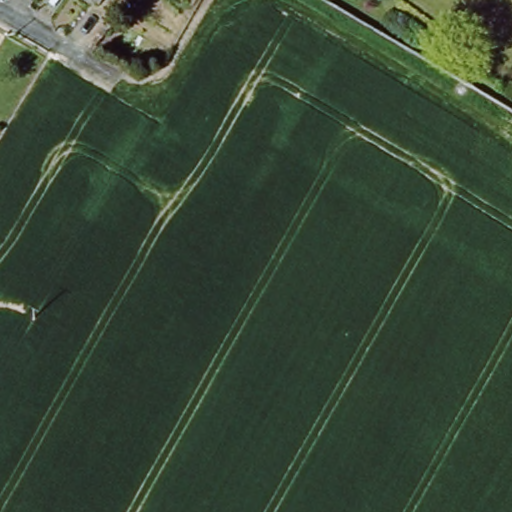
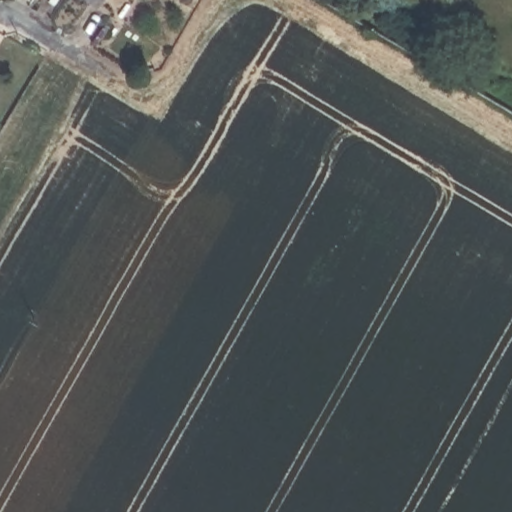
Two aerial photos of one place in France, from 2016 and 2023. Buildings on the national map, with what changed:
unchanged [(89,0),(103,0),(98,6),(89,0)]

